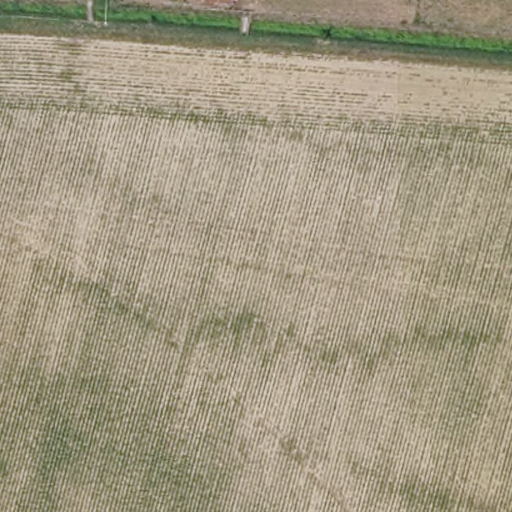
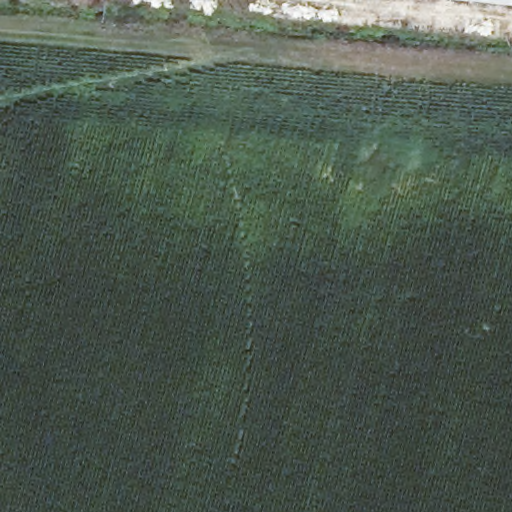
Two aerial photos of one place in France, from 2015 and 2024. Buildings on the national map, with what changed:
new [(512,4),(471,0),(512,0),(512,4)]

